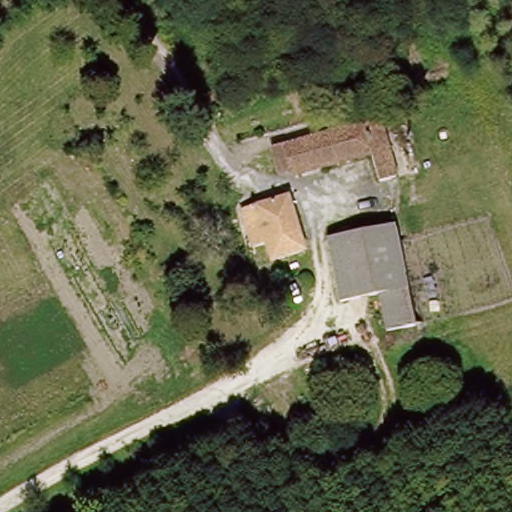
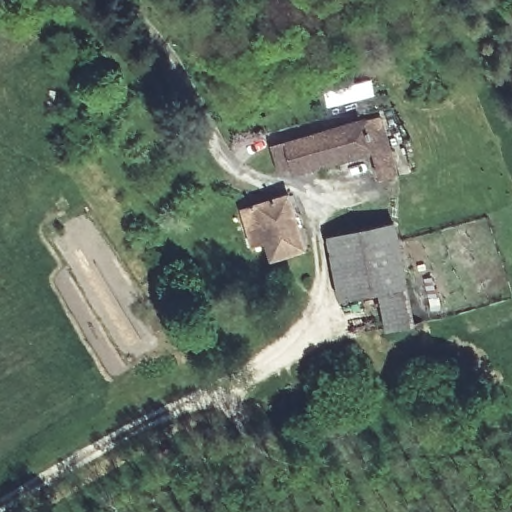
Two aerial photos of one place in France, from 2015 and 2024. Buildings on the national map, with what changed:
unchanged [(402,191),(388,193),(382,156),(280,173),(278,170),(263,171),(262,160),(276,159),(274,142),(392,123),(402,191)]
unchanged [(252,241),(250,222),(246,222),(245,202),(261,201),(293,196),(303,252),(271,257),(267,240),(252,241)]
unchanged [(415,325),(391,328),(385,291),(351,296),(342,237),(401,228),(410,287),(415,322),(415,325)]

